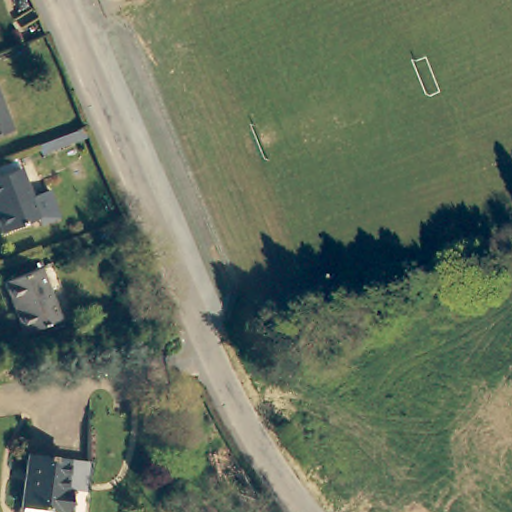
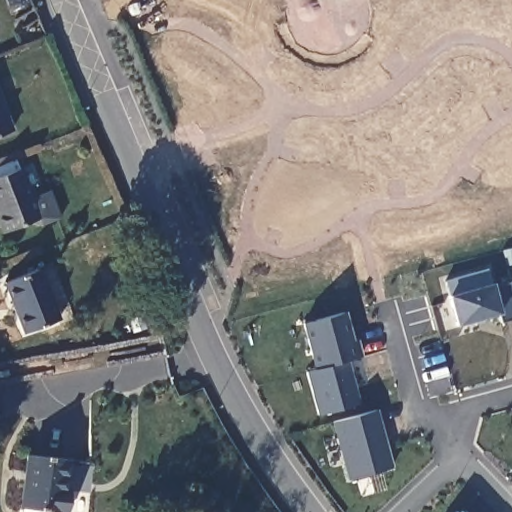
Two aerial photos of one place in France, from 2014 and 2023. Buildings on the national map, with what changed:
unchanged [(0,103),(14,136),(0,141),(0,103)]
unchanged [(28,199),(51,191),(62,217),(37,225),(34,218),(0,230),(0,175),(16,170),(28,199)]
new [(503,323),(502,315),(458,326),(451,296),(446,281),(487,270),(492,285),(512,281),(512,321),(503,323)]
unchanged [(40,272),(60,322),(26,335),(7,286),(40,272)]
new [(344,316),(352,345),(357,344),(362,360),(349,364),(317,373),(304,328),(344,316)]
new [(317,373),(349,364),(362,407),(321,420),(307,376),(317,373)]
new [(377,413),(394,470),(352,483),(335,425),(377,413)]
unchanged [(81,456),(76,512),(8,512),(15,448),(81,456)]
new [(463,512),(460,512),(462,510),(463,512)]

